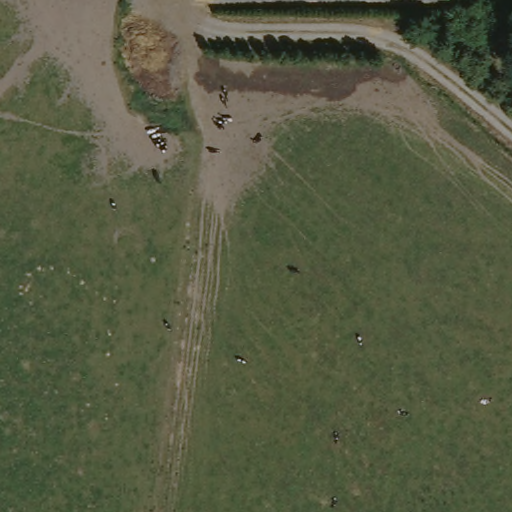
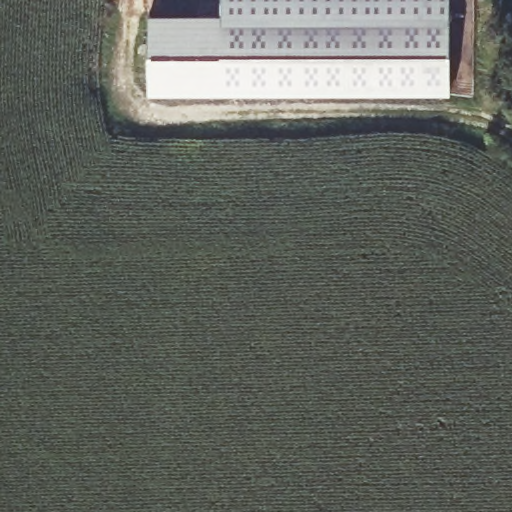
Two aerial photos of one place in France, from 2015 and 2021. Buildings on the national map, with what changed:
new [(149,93),(149,13),(223,12),(223,0),(450,0),(450,94),(149,93)]
demolished [(218,6),(218,0),(445,0),(446,5),(218,6)]

